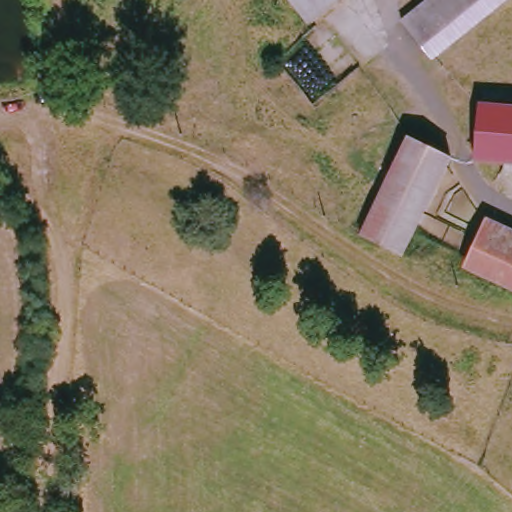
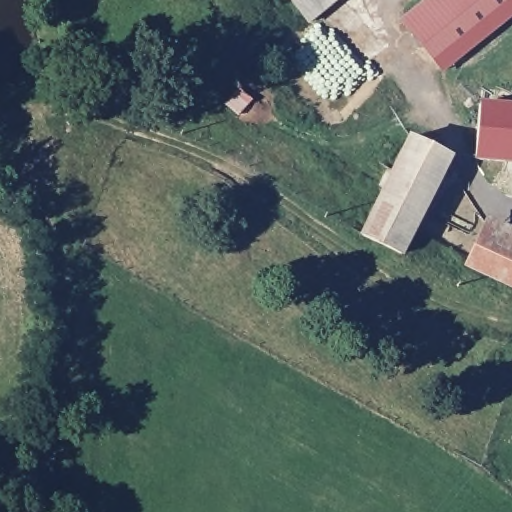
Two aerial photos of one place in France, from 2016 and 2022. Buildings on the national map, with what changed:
unchanged [(347,0),(313,27),(291,0),(347,0)]
unchanged [(439,0),(489,0),(433,45),(408,25),(439,0)]
unchanged [(485,104),(512,108),(512,164),(476,158),(485,104)]
unchanged [(417,146),(422,137),(458,157),(404,259),(369,242),(417,146)]
unchanged [(512,291),(469,271),(489,222),(512,231),(512,291)]

